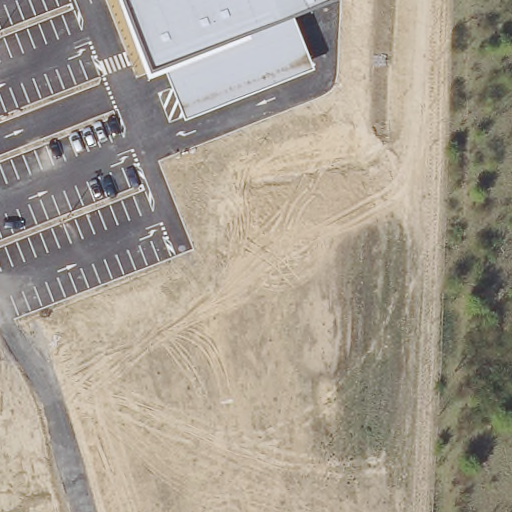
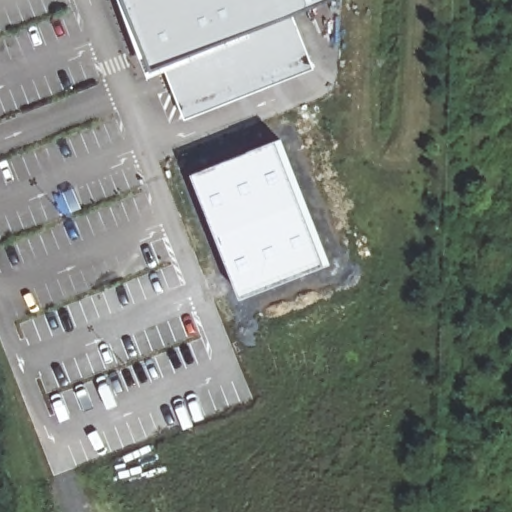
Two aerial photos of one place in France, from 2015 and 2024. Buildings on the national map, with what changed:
unchanged [(152,75),(123,0),(326,0),(296,12),(316,66),(186,118),(167,68),(152,75)]
new [(329,266),(244,299),(194,174),(279,141),(329,266)]

